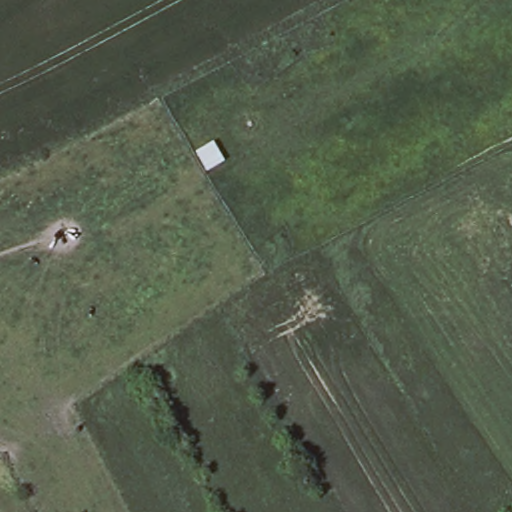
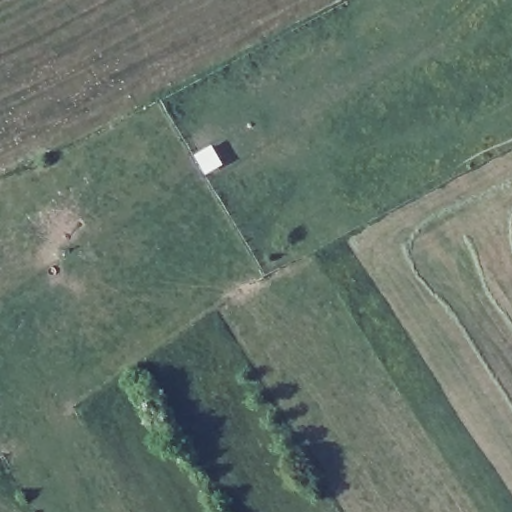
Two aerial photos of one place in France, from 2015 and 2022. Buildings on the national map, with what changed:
[]

